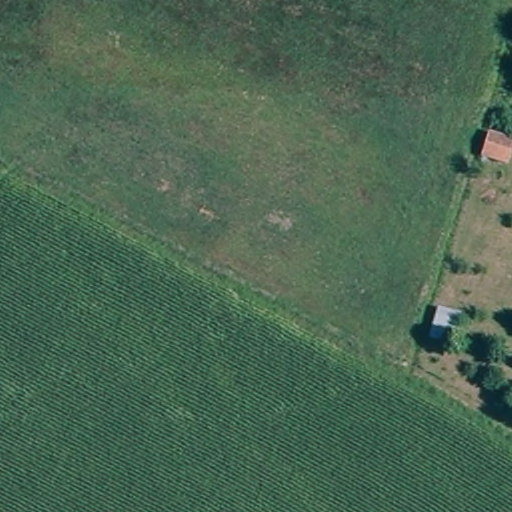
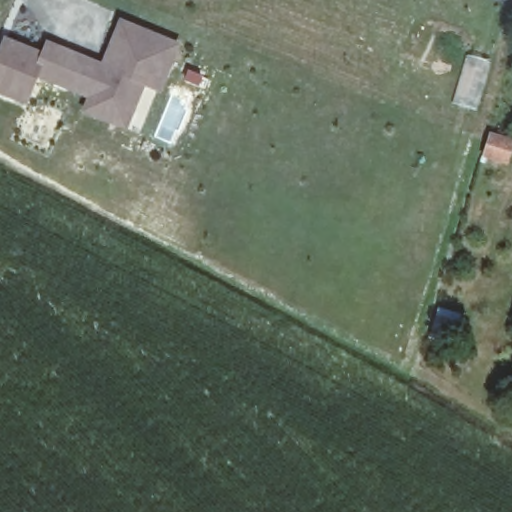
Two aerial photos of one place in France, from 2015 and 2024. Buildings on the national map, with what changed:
new [(43,53),(47,41),(102,63),(120,20),(181,46),(161,95),(146,90),(127,132),(81,114),(87,100),(39,81),(27,108),(0,96),(0,50),(5,38),(43,53)]
unchanged [(509,137),(501,157),(482,150),(491,130),(509,137)]

